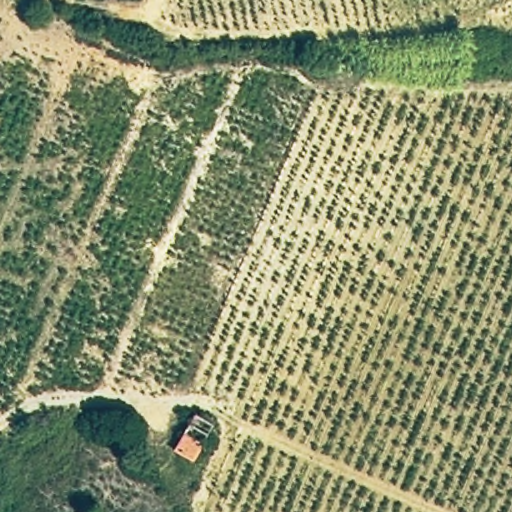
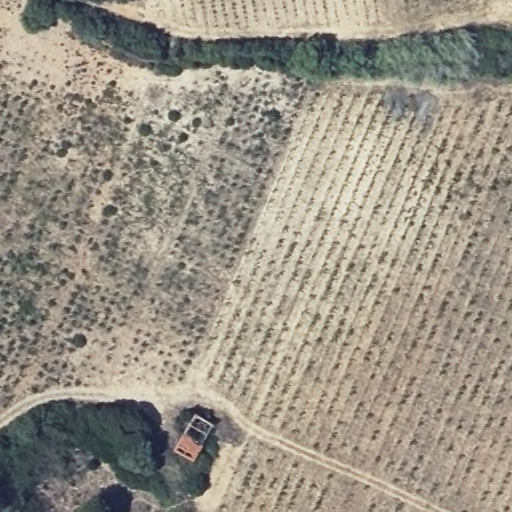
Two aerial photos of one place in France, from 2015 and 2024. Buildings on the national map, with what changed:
unchanged [(172,452),(190,409),(217,426),(196,462),(172,452)]

